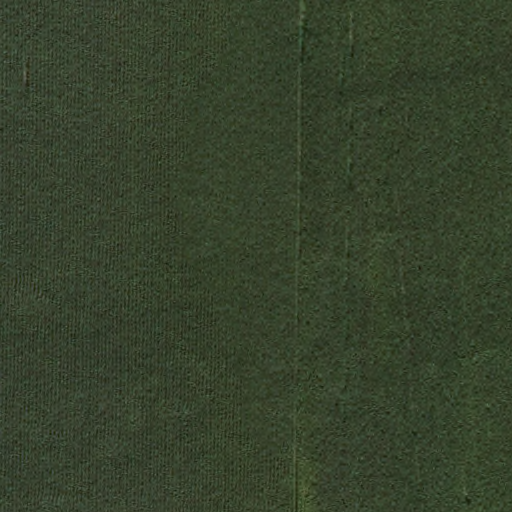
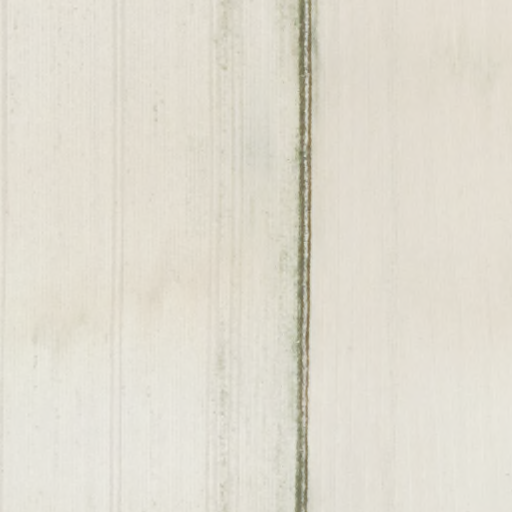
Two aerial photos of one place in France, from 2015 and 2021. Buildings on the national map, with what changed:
[]

